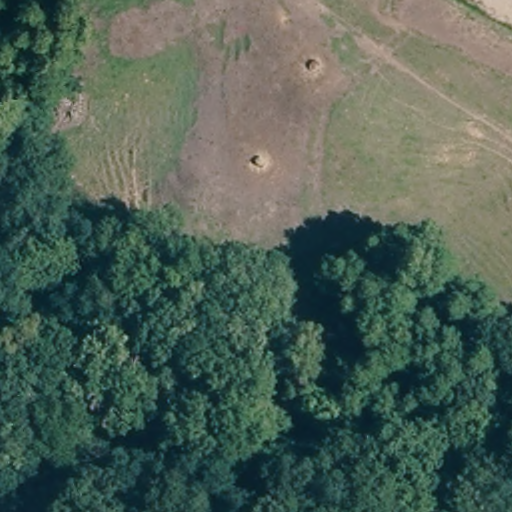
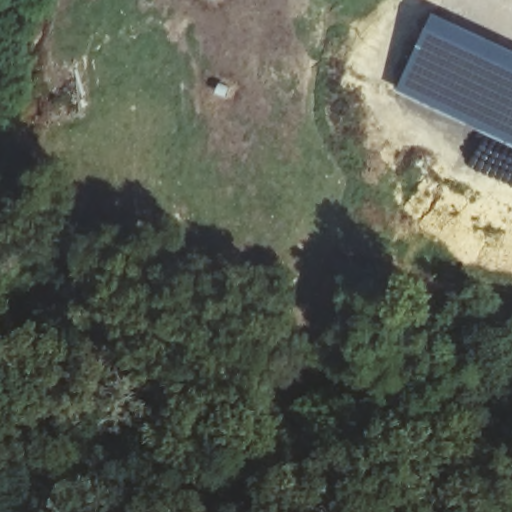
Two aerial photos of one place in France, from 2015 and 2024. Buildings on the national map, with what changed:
new [(434,11),(512,47),(512,143),(399,89),(434,11)]

